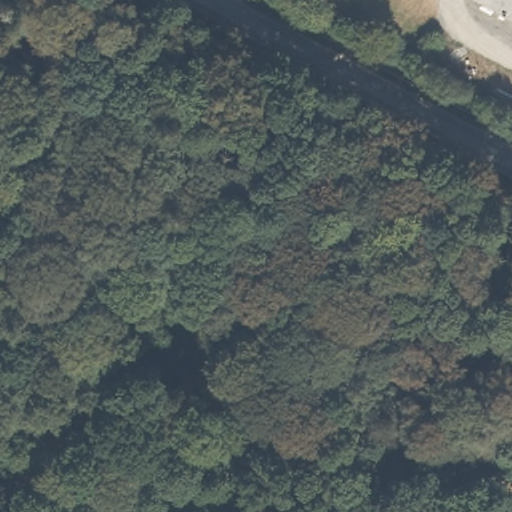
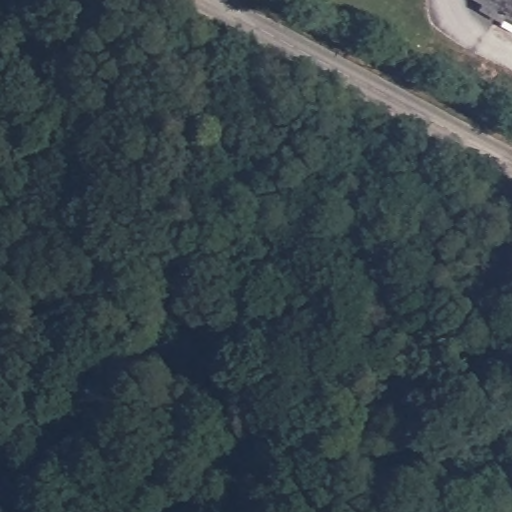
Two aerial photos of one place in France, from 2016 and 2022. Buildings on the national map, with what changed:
unchanged [(470,2),(471,0),(512,0),(512,23),(470,2)]

